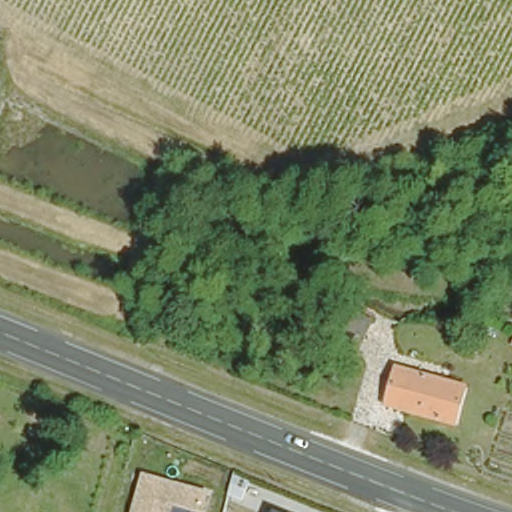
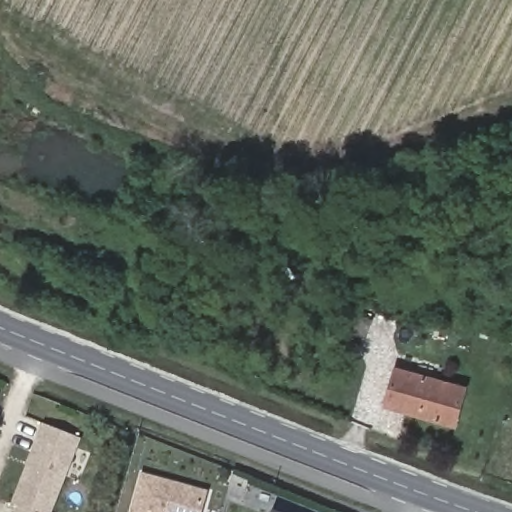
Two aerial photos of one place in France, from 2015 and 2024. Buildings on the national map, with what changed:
new [(342,304),(374,319),(367,333),(335,318),(342,304)]
unchanged [(395,362),(465,384),(459,419),(385,401),(395,362)]
new [(18,507),(10,504),(42,424),(82,439),(53,512),(15,512),(18,507)]
unchanged [(207,512),(132,512),(143,472),(212,492),(207,512)]
unchanged [(273,511),(276,512),(273,512),(273,511)]

